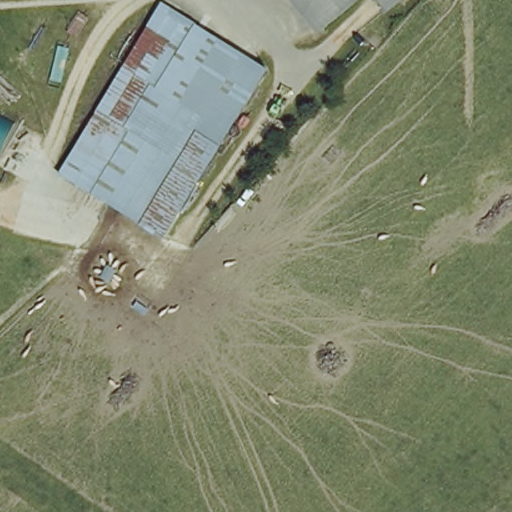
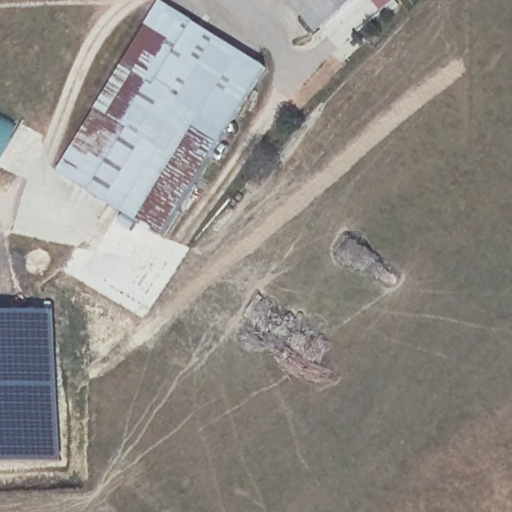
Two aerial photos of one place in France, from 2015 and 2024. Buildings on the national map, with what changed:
unchanged [(318,32),(289,0),(355,0),(324,27),(318,32)]
unchanged [(385,0),(393,0),(389,4),(385,0)]
unchanged [(194,142),(149,226),(64,180),(155,12),(263,74),(218,157),(216,156),(194,142)]
unchanged [(0,115),(8,118),(0,136),(0,115)]
unchanged [(173,236),(149,226),(194,142),(216,156),(173,236)]
new [(60,383),(61,461),(0,464),(0,313),(55,311),(60,383)]

